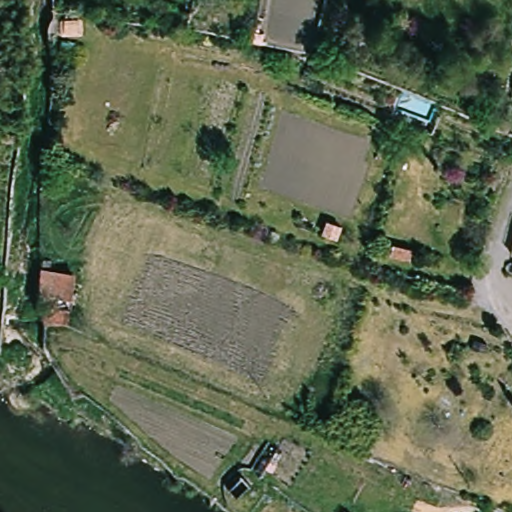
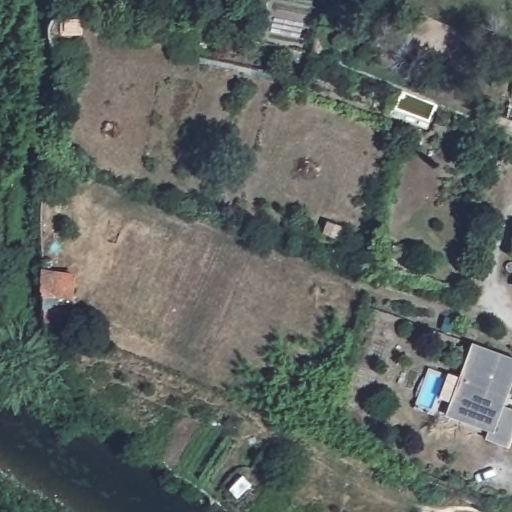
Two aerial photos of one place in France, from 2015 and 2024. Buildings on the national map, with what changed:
unchanged [(80,273),(77,323),(52,323),(51,272),(80,273)]
new [(512,357),(512,369),(499,406),(512,411),(512,426),(506,442),(505,447),(480,438),(483,428),(444,414),(471,342),(475,343),(512,357)]

